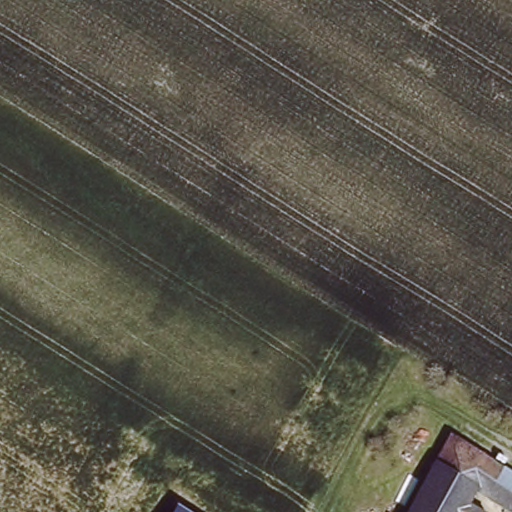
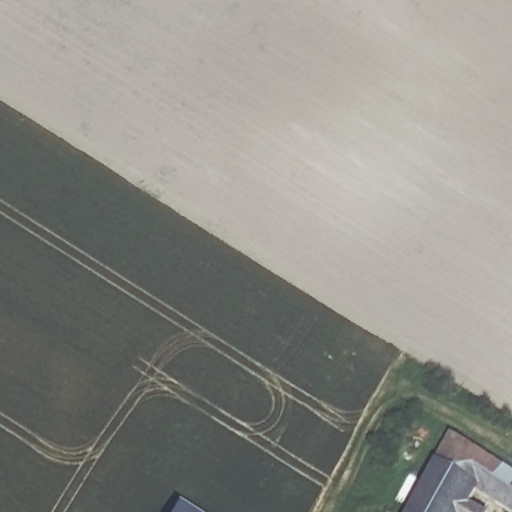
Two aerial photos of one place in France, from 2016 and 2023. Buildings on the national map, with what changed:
unchanged [(512,474),(512,512),(510,512),(484,496),(486,492),(478,488),(470,504),(485,512),(407,512),(450,435),(512,474)]
unchanged [(190,512),(173,512),(177,505),(190,512)]

